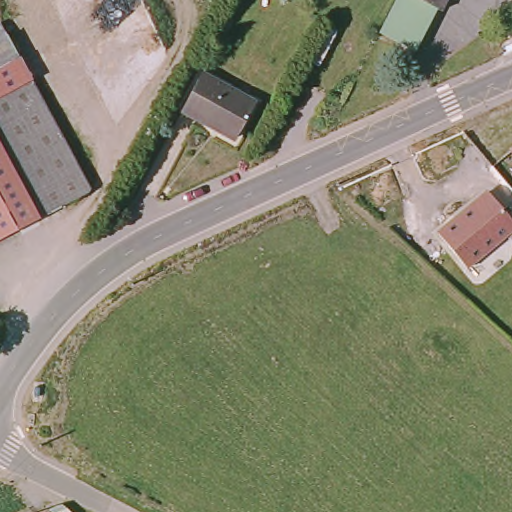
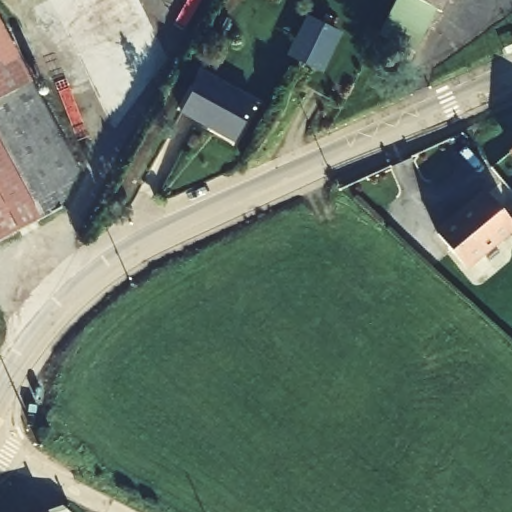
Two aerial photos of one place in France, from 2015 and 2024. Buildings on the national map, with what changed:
unchanged [(276,4),(269,0),(279,0),(276,4)]
unchanged [(441,6),(433,2),(410,46),(378,31),(395,0),(444,0),(441,6)]
new [(287,55),(306,15),(342,30),(323,69),(287,55)]
unchanged [(0,239),(0,17),(81,169),(62,206),(0,239)]
unchanged [(252,105),(232,144),(177,113),(197,76),(252,105)]
unchanged [(489,192),(512,221),(512,230),(465,268),(437,233),(489,192)]
unchanged [(64,512),(49,512),(62,507),(64,512)]

